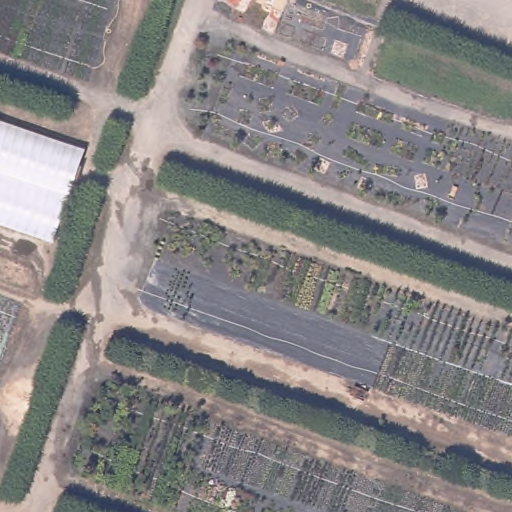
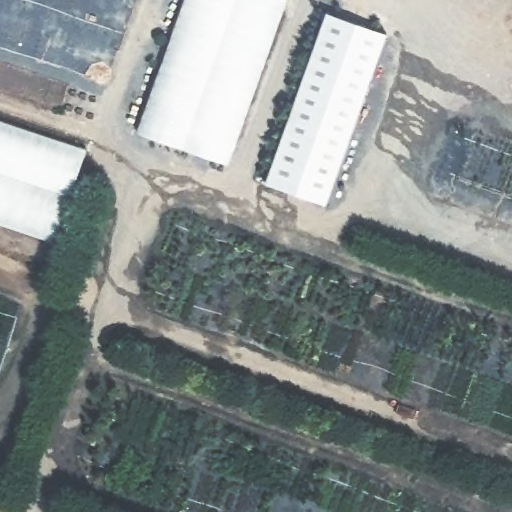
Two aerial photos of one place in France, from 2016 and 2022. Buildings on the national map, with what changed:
new [(228,164),(137,132),(185,0),(287,0),(228,164)]
new [(389,35),(327,204),(265,181),(327,12),(389,35)]
unchanged [(92,148),(58,246),(0,226),(0,118),(92,148)]

